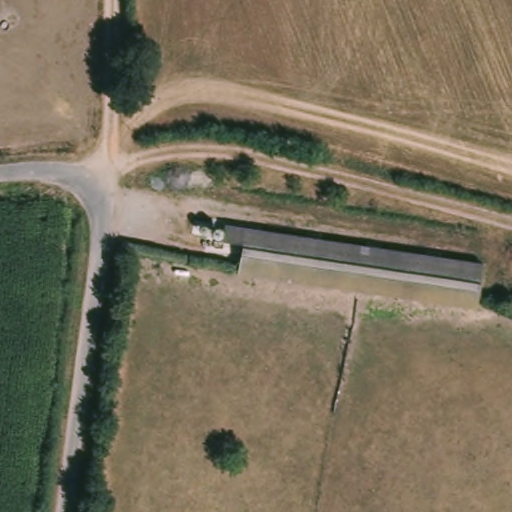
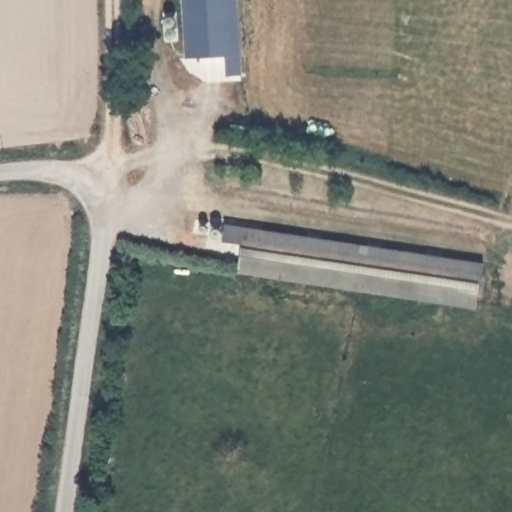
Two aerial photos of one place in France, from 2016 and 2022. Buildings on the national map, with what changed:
new [(234,55),(240,54),(242,75),(227,75),(225,56),(188,58),(185,0),(231,0),(234,55)]
new [(240,54),(234,55),(231,0),(237,0),(240,54)]
unchanged [(479,306),(239,273),(244,243),(212,240),(214,223),(226,225),(227,221),(485,260),(479,306)]

